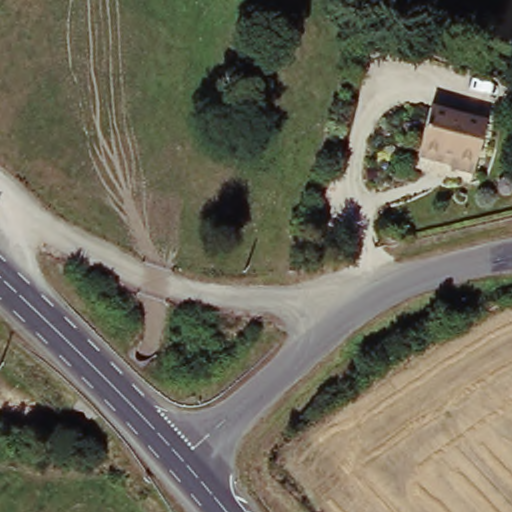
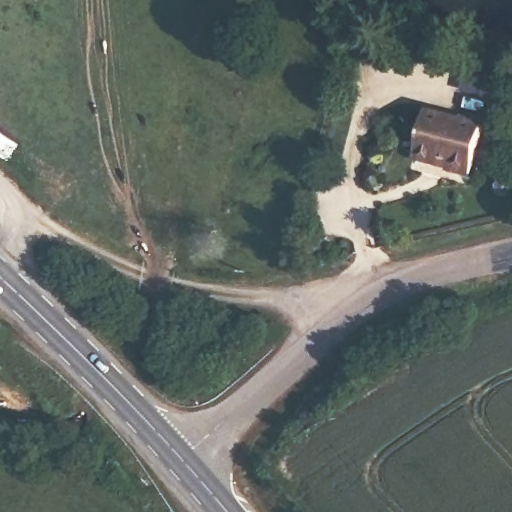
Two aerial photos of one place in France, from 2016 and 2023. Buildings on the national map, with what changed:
unchanged [(491,120),(470,175),(448,171),(451,165),(416,156),(426,102),(491,120)]

